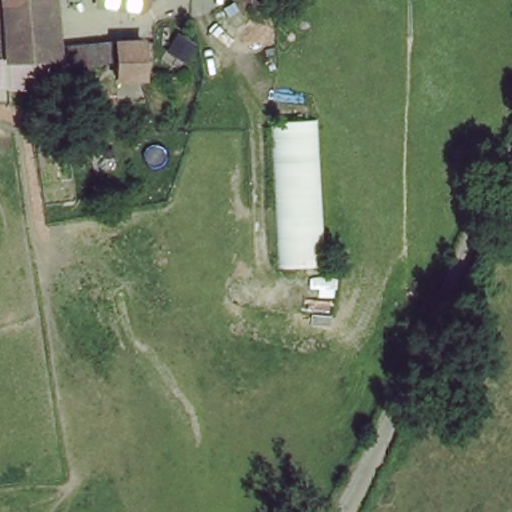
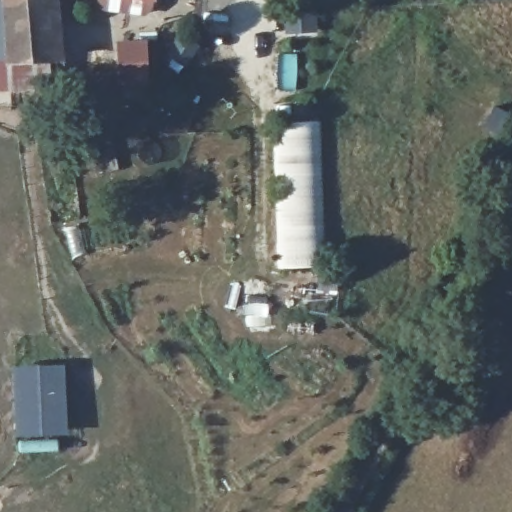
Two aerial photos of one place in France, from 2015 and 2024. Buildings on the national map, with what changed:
unchanged [(37,72),(0,68),(0,0),(44,0),(37,72)]
unchanged [(151,44),(151,80),(123,79),(121,64),(92,67),(87,47),(151,44)]
unchanged [(47,84),(47,64),(79,61),(83,83),(47,84)]
unchanged [(278,270),(276,127),(321,127),(321,272),(278,270)]
new [(65,363),(68,435),(14,437),(12,365),(65,363)]

